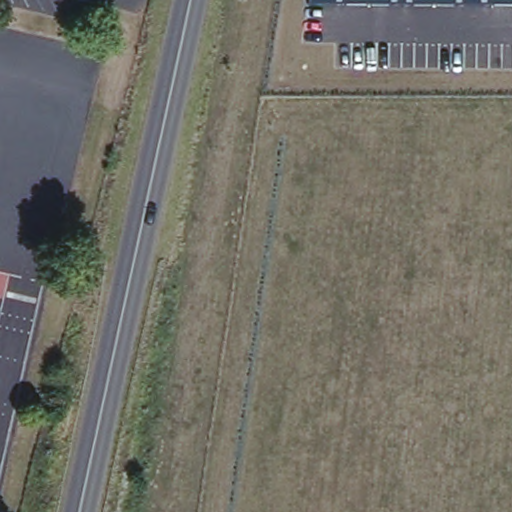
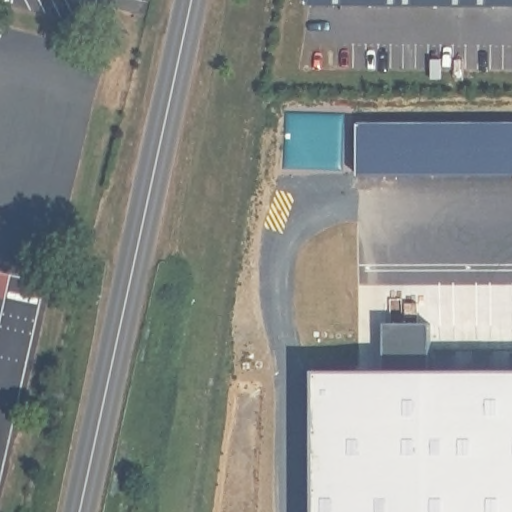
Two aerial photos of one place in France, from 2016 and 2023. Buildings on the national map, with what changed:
unchanged [(308,2),(308,0),(512,0),(512,3),(308,2)]
new [(512,124),(512,174),(358,175),(359,123),(512,124)]
new [(384,324),(429,323),(429,371),(512,370),(512,512),(315,512),(314,373),(383,371),(384,324)]

